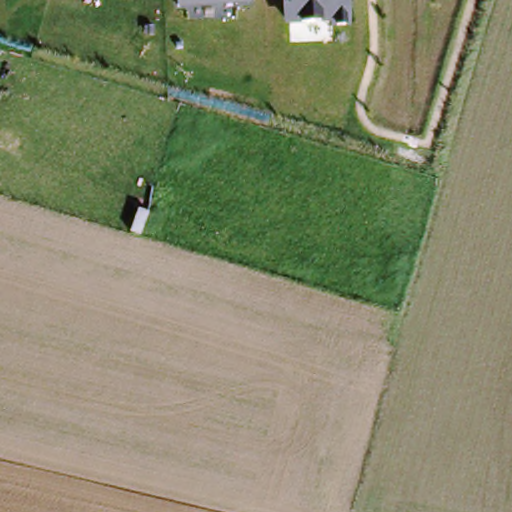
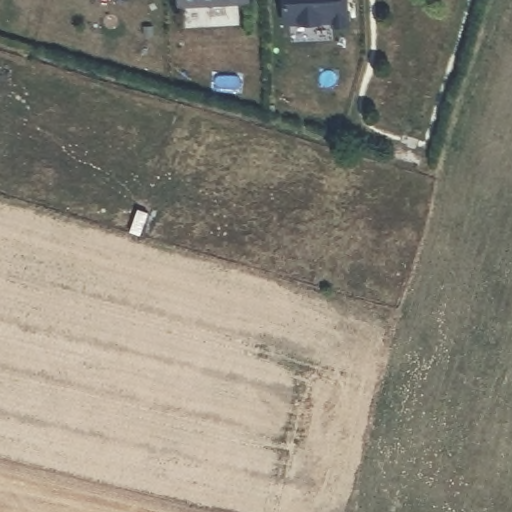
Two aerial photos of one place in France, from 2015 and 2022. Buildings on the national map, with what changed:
unchanged [(179,4),(179,0),(248,0),(248,1),(179,4)]
unchanged [(332,25),(331,21),(286,22),(285,0),(348,0),(349,24),(332,25)]

